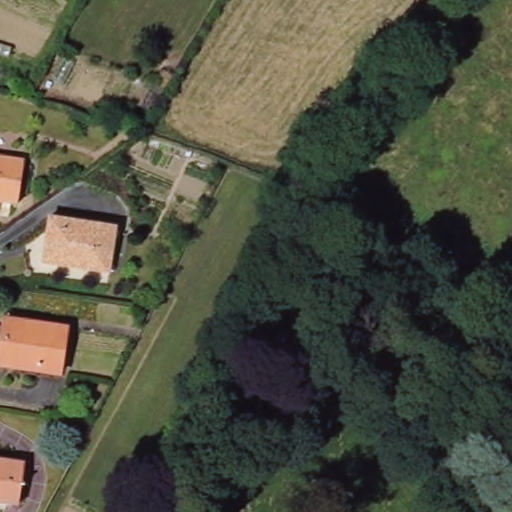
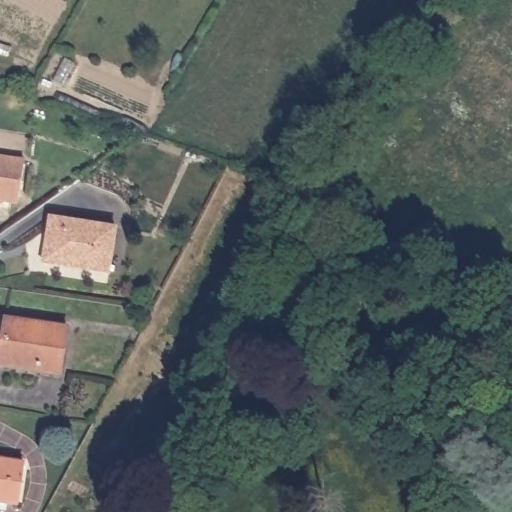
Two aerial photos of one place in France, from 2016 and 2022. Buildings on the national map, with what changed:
unchanged [(17,207),(0,204),(0,159),(24,163),(17,207)]
unchanged [(119,228),(113,272),(49,262),(55,218),(119,228)]
unchanged [(0,363),(6,320),(66,329),(59,375),(0,366),(0,363)]
unchanged [(15,504),(0,501),(0,457),(24,461),(15,504)]

